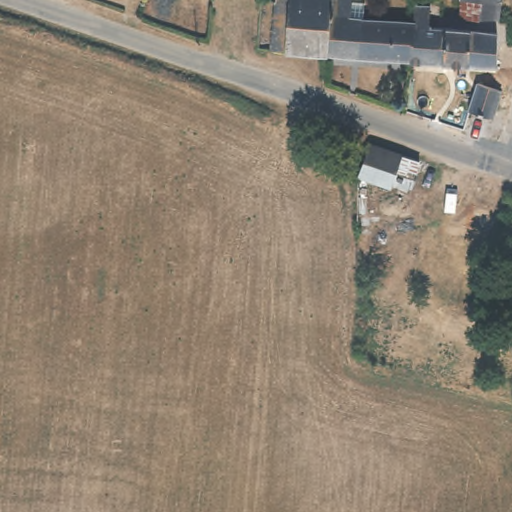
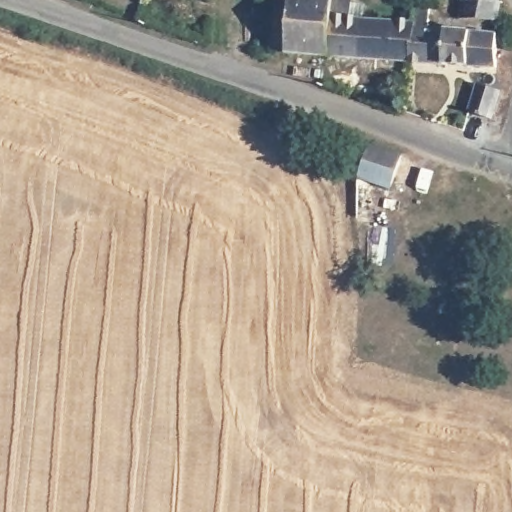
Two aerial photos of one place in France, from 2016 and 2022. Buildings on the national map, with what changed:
unchanged [(269,0),(349,0),(348,19),(408,23),(404,60),(264,49),(269,0)]
unchanged [(463,11),(464,0),(502,0),(501,14),(463,11)]
unchanged [(426,8),(424,22),(436,23),(437,24),(435,58),(404,60),(408,23),(409,6),(426,8)]
unchanged [(500,28),(499,61),(435,58),(437,24),(500,28)]
unchanged [(502,96),(493,121),(471,113),(480,88),(502,96)]
unchanged [(373,146),(406,157),(395,191),(362,175),(373,146)]

